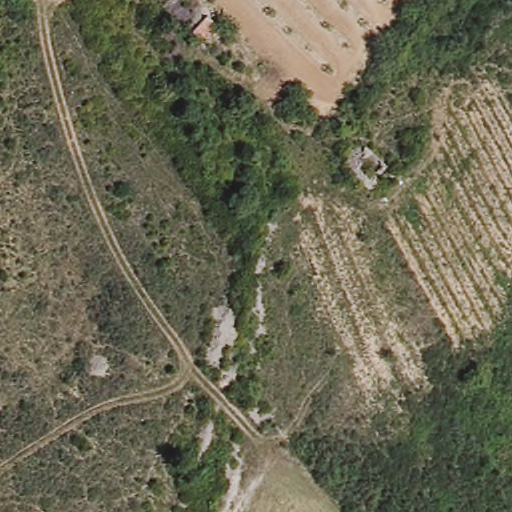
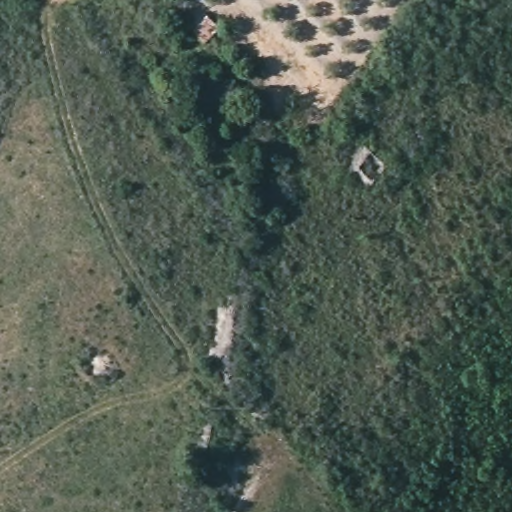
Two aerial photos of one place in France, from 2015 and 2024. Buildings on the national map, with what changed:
unchanged [(208,15),(219,25),(207,38),(198,29),(208,15)]

